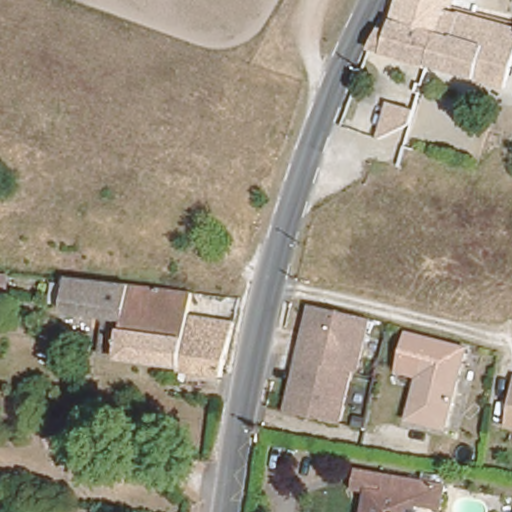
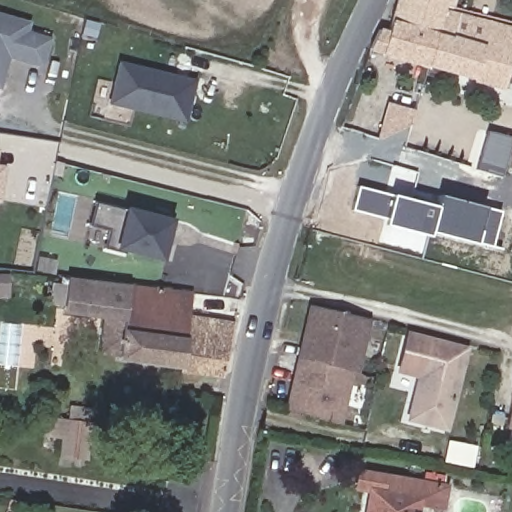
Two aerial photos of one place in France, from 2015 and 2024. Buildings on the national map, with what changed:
unchanged [(390,19),(398,0),(445,0),(445,2),(443,7),(436,32),(390,19)]
unchanged [(443,7),(512,26),(512,36),(500,83),(427,64),(436,32),(443,7)]
new [(9,57),(0,88),(0,13),(30,21),(27,30),(50,37),(42,67),(9,57)]
unchanged [(378,24),(386,27),(390,19),(436,32),(427,64),(368,47),(378,24)]
new [(179,77),(197,81),(192,103),(188,122),(112,104),(122,64),(179,77)]
unchanged [(383,100),(415,107),(411,126),(373,140),(383,100)]
new [(502,177),(476,171),(486,132),(512,138),(502,177)]
new [(350,211),(356,188),(435,208),(437,197),(498,212),(489,247),(428,231),(427,236),(382,225),(383,219),(350,211)]
new [(101,204),(181,222),(172,260),(142,252),(141,257),(122,253),(126,235),(95,228),(101,204)]
unchanged [(192,295),(191,311),(190,318),(185,366),(121,357),(122,353),(102,351),(107,317),(66,311),(70,278),(192,295)]
demolished [(193,289),(195,278),(219,282),(240,285),(234,317),(191,311),(192,295),(193,289)]
unchanged [(368,317),(343,425),(282,412),(307,305),(368,317)]
unchanged [(190,318),(233,324),(224,375),(185,369),(185,366),(190,318)]
unchanged [(444,426),(405,415),(416,372),(398,367),(407,331),(463,343),(460,362),(444,426)]
unchanged [(512,377),(512,430),(506,428),(512,377)]
unchanged [(82,453),(43,448),(50,399),(88,405),(82,453)]
unchanged [(369,485),(358,482),(363,464),(453,479),(447,506),(425,502),(422,512),(364,512),(369,485)]

